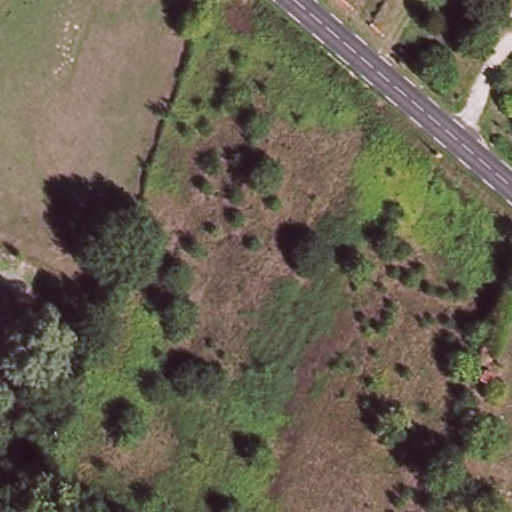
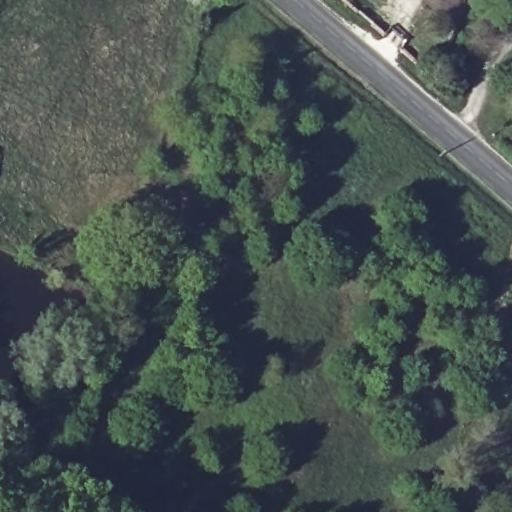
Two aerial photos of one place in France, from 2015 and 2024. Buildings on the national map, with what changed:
[]

